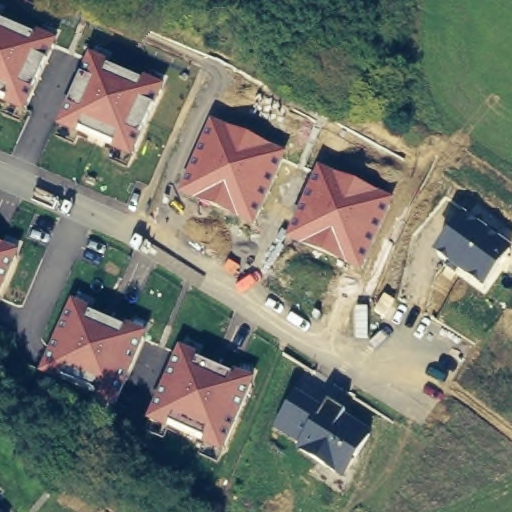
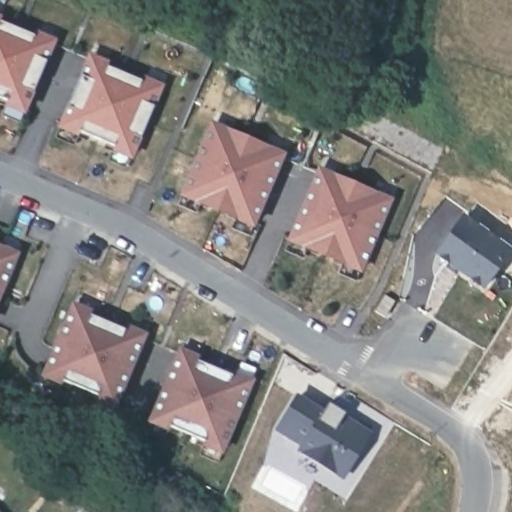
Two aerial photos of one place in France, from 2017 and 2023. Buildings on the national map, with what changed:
unchanged [(26,107),(0,96),(0,22),(52,44),(26,107)]
unchanged [(90,58),(160,89),(133,150),(63,121),(90,58)]
unchanged [(255,228),(178,195),(211,121),(286,152),(255,228)]
unchanged [(394,199),(361,274),(286,240),(317,165),(394,199)]
unchanged [(512,248),(512,249),(484,290),(433,253),(462,212),(512,248)]
unchanged [(0,241),(22,250),(0,304),(0,241)]
unchanged [(116,413),(35,381),(70,296),(152,332),(116,413)]
unchanged [(258,379),(225,460),(143,423),(177,342),(258,379)]
unchanged [(325,409),(328,403),(372,432),(343,479),(297,451),(300,445),(272,429),(295,393),(325,409)]

